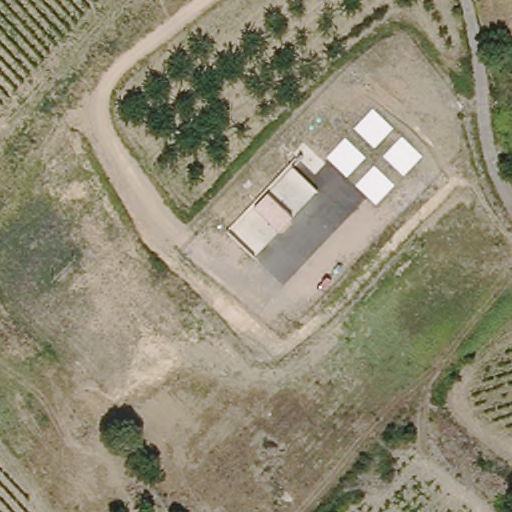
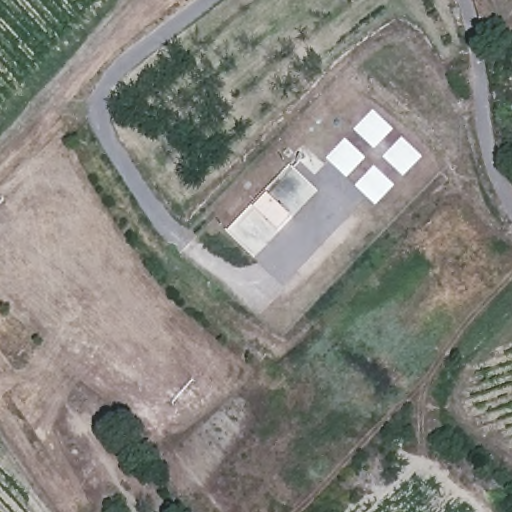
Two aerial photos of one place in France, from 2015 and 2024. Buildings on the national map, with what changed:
unchanged [(253,209),(267,195),(291,216),(279,231),(253,209)]

